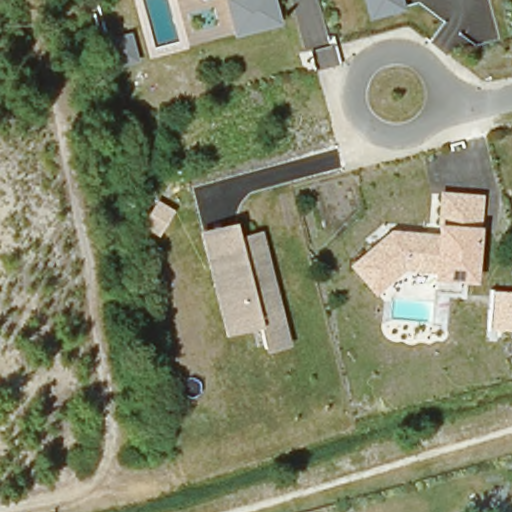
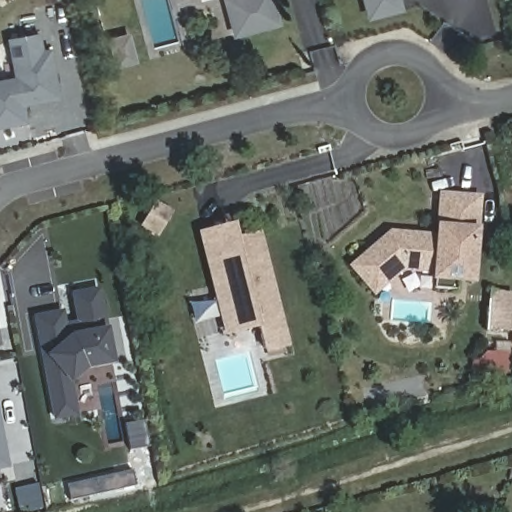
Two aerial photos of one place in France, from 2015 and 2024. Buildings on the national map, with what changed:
unchanged [(221,0),(273,0),(278,21),(231,33),(221,0)]
unchanged [(369,21),(363,0),(402,0),(405,11),(369,21)]
new [(20,78),(11,40),(41,34),(45,51),(52,49),(63,96),(27,104),(31,121),(0,128),(0,83),(20,78)]
unchanged [(390,230),(434,233),(438,192),(483,196),(480,226),(475,283),(435,281),(436,277),(404,272),(376,295),(349,267),(390,230)]
unchanged [(161,239),(139,226),(155,199),(176,211),(161,239)]
unchanged [(260,228),(288,343),(264,353),(258,326),(222,334),(194,229),(232,221),(237,236),(260,228)]
new [(60,417),(56,395),(39,316),(66,310),(69,324),(83,321),(77,296),(102,291),(118,364),(91,369),(75,380),(77,390),(82,413),(60,417)]
new [(3,426),(11,464),(0,466),(0,411),(3,426)]

